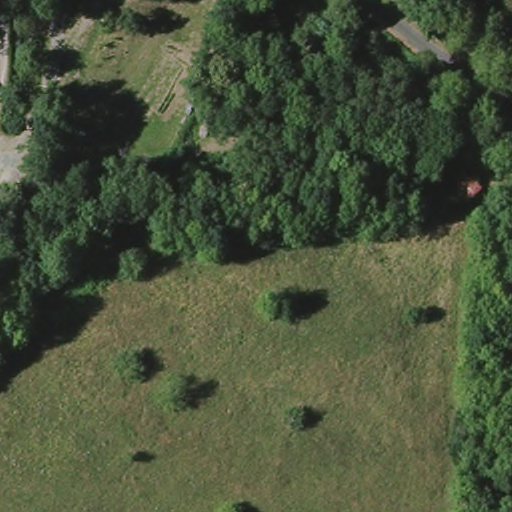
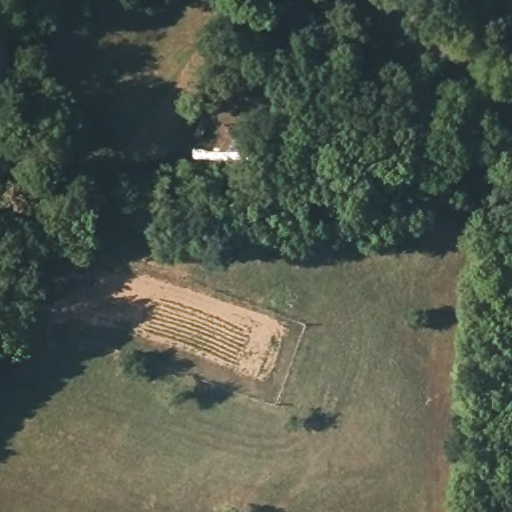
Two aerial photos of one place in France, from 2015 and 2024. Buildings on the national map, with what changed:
unchanged [(415,172),(412,199),(390,195),(395,164),(415,172)]

